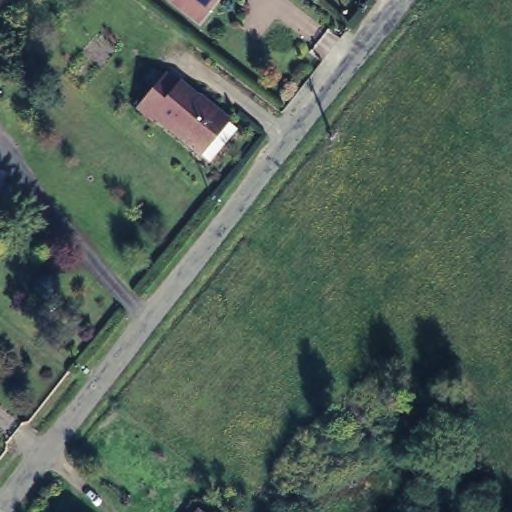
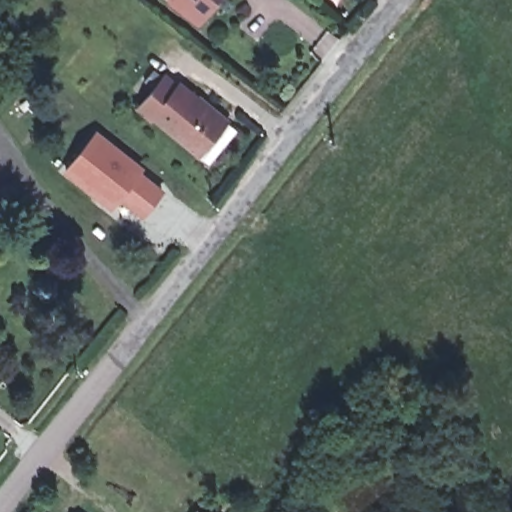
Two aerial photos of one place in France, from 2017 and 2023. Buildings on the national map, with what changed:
unchanged [(175,0),(213,0),(210,3),(197,19),(182,6),(181,5),(175,0)]
unchanged [(199,158),(192,153),(151,119),(149,122),(135,111),(162,78),(175,88),(177,85),(220,120),(226,124),(199,158)]
new [(63,171),(96,130),(144,167),(142,171),(162,190),(142,216),(119,198),(110,209),(63,171)]

